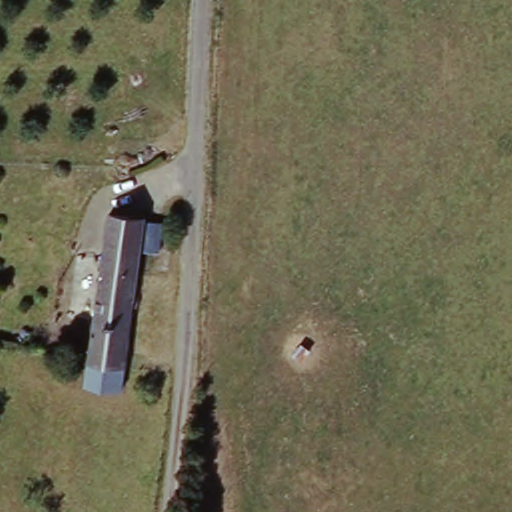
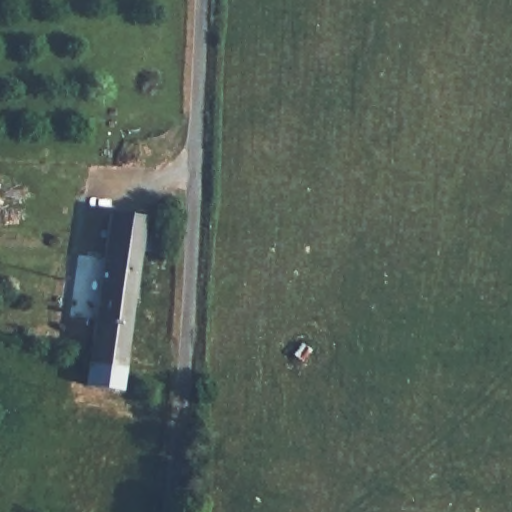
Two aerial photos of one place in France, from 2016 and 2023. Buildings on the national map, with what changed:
unchanged [(86,385),(90,361),(112,217),(149,222),(127,368),(124,390),(86,385)]

